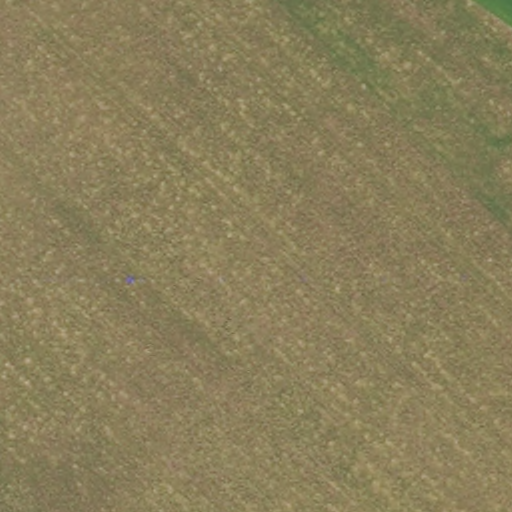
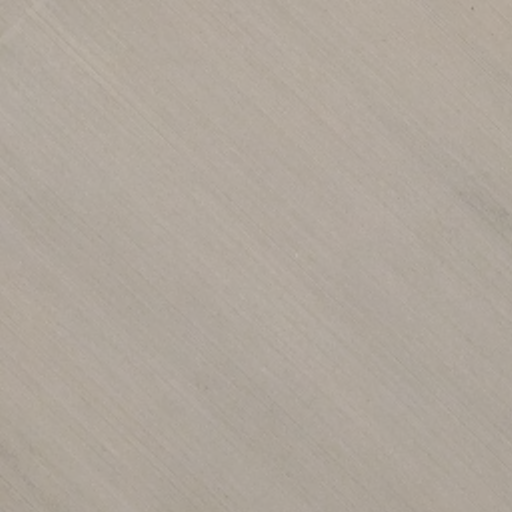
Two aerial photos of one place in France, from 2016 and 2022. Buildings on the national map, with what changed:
[]

